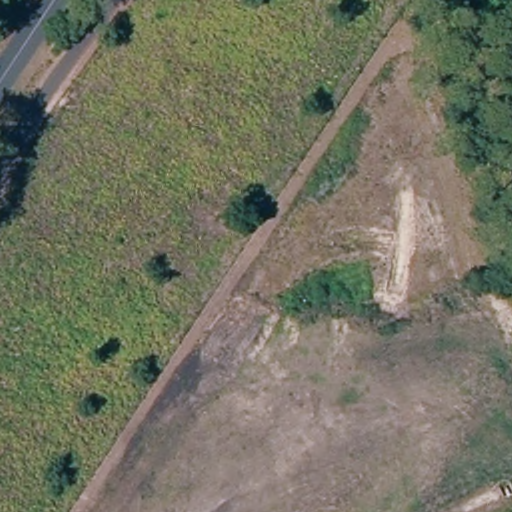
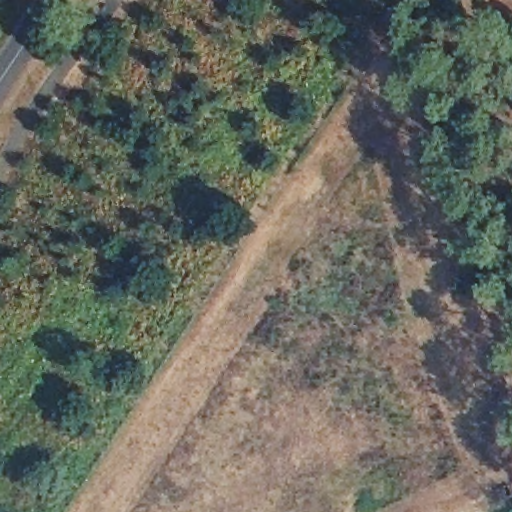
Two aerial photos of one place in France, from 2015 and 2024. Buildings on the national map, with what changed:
[]

